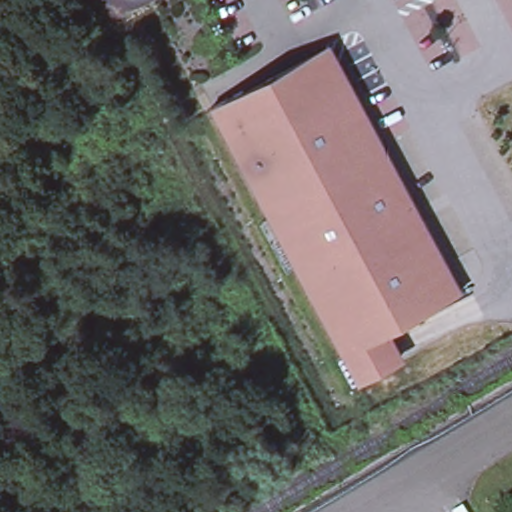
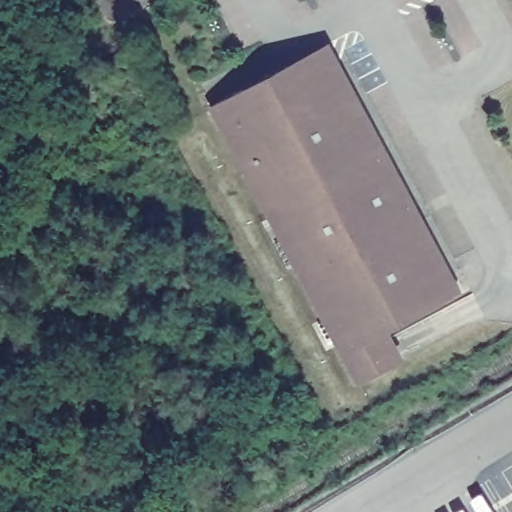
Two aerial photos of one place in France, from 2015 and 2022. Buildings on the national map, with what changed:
unchanged [(240,86),(251,109),(312,76),(306,65),(334,50),(340,62),(342,61),(457,290),(375,333),(390,362),(355,381),(209,103),(240,86)]

